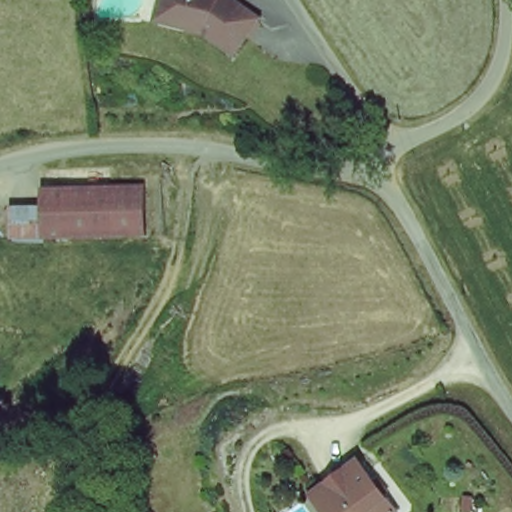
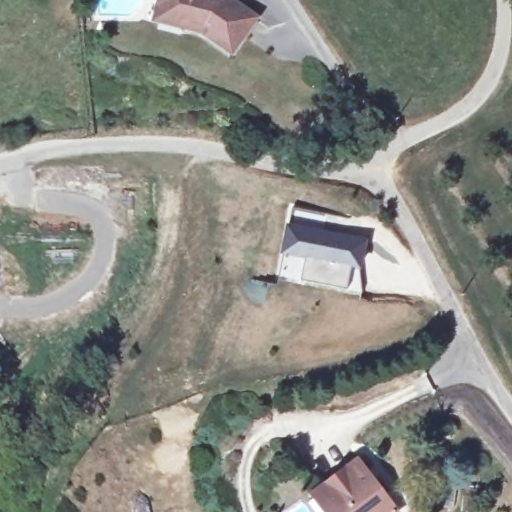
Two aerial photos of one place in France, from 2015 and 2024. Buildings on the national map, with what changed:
unchanged [(168,9),(170,0),(235,0),(261,18),(237,47),(213,31),(194,26),(166,19),(168,9)]
demolished [(50,211),(51,190),(143,190),(141,240),(50,239),(50,211)]
unchanged [(19,239),(18,209),(50,211),(50,239),(19,239)]
new [(278,279),(294,210),(348,219),(345,237),(365,240),(360,270),(359,295),(278,279)]
unchanged [(362,465),(397,512),(339,512),(326,493),(362,465)]

